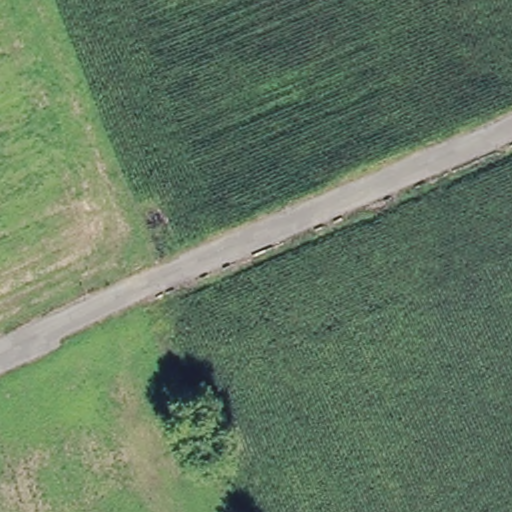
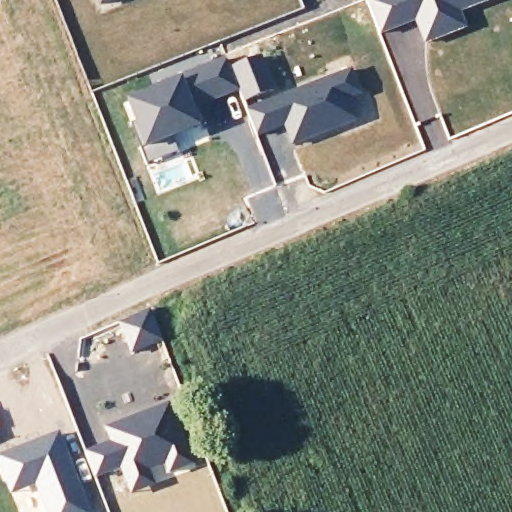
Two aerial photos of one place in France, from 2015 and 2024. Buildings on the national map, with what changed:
new [(98,0),(117,0),(101,6),(98,0)]
new [(468,28),(423,45),(414,24),(378,36),(364,0),(493,0),(462,12),(468,28)]
new [(225,57),(230,67),(246,60),(259,95),(244,100),(240,90),(198,109),(182,75),(225,57)]
new [(278,95),(356,69),(379,119),(292,147),(302,175),(282,182),(262,135),(257,137),(247,108),(278,95)]
new [(182,75),(198,109),(205,126),(175,139),(179,152),(147,162),(126,101),(182,75)]
new [(150,308),(162,342),(131,354),(118,321),(150,308)]
new [(108,438),(105,428),(117,422),(119,428),(119,430),(133,437),(127,450),(134,455),(144,438),(146,439),(148,436),(173,450),(178,457),(176,461),(173,469),(173,473),(170,475),(172,480),(130,495),(128,491),(118,470),(96,478),(84,450),(108,438)]
new [(93,512),(44,512),(34,486),(10,495),(0,469),(0,455),(61,433),(93,512)]
new [(128,491),(130,495),(172,480),(170,475),(173,473),(207,465),(226,512),(122,512),(115,495),(128,491)]

